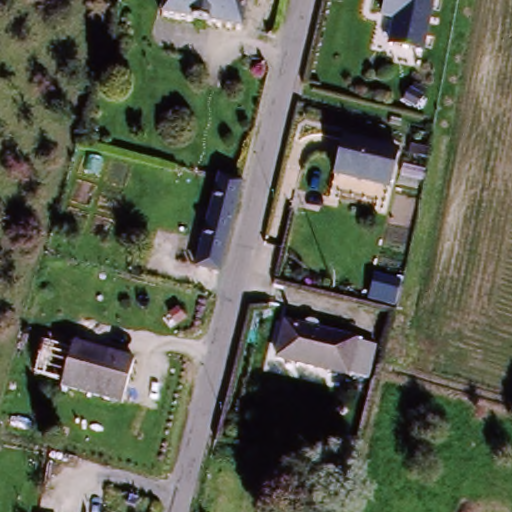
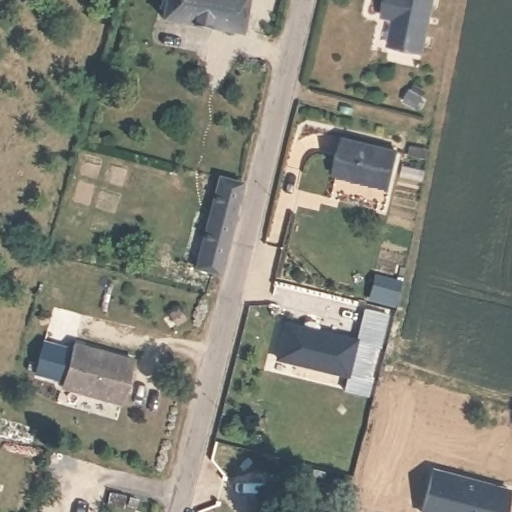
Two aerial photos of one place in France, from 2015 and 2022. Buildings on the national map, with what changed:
unchanged [(160,0),(250,0),(243,39),(156,22),(160,0)]
unchanged [(389,0),(436,0),(424,52),(392,45),(399,16),(386,14),(389,0)]
unchanged [(395,158),(389,190),(337,180),(343,148),(395,158)]
unchanged [(246,188),(225,271),(201,264),(222,182),(246,188)]
unchanged [(285,363),(293,327),(349,341),(376,347),(369,382),(285,363)]
unchanged [(73,346),(133,362),(122,402),(63,387),(73,346)]
demolished [(512,486),(483,478),(489,453),(512,459),(512,486)]
new [(432,466),(511,490),(504,512),(425,512),(418,510),(432,466)]
unchanged [(124,478),(150,485),(141,512),(114,512),(124,478)]

